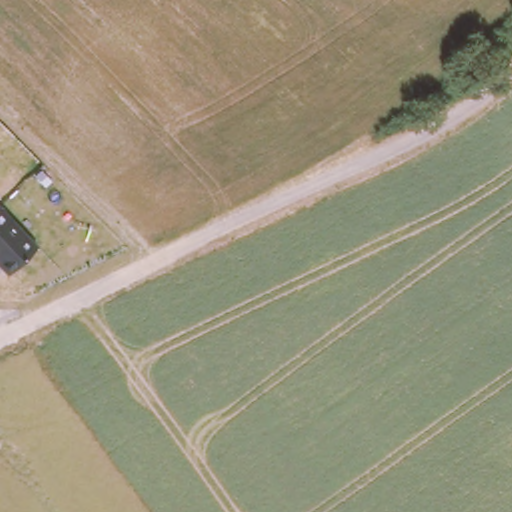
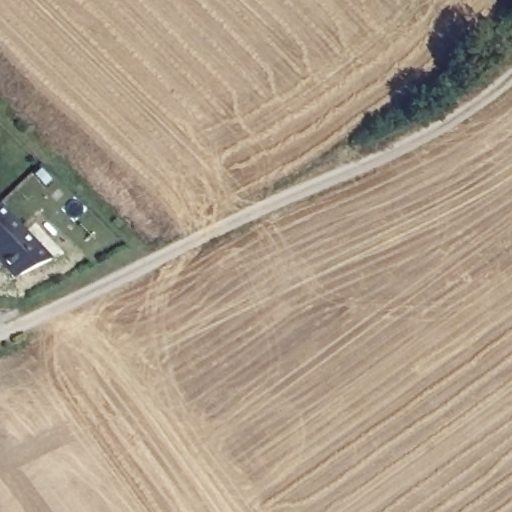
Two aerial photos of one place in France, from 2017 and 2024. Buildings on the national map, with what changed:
unchanged [(7,274),(0,266),(0,207),(37,245),(7,274)]

